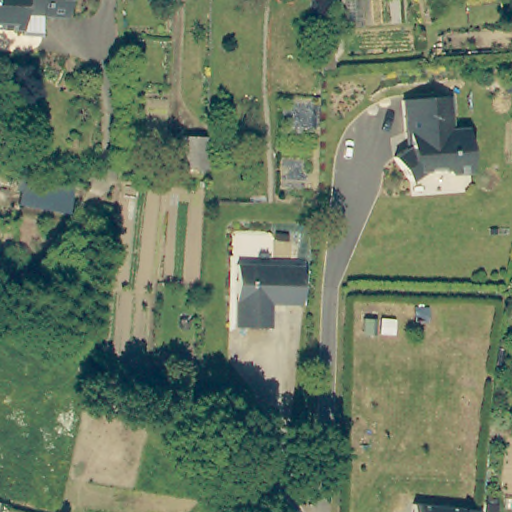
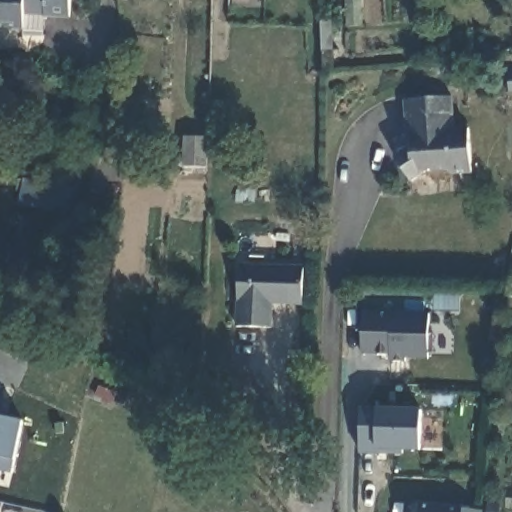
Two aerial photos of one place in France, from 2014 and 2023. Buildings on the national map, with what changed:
unchanged [(47,12),(46,33),(26,32),(26,27),(0,25),(0,0),(72,0),(71,13),(47,12)]
unchanged [(450,127),(464,126),(468,169),(448,171),(443,166),(423,168),(408,178),(391,154),(407,144),(406,134),(403,134),(400,98),(447,94),(450,127)]
unchanged [(209,136),(208,166),(186,165),(189,134),(209,136)]
unchanged [(75,185),(71,214),(21,205),(26,178),(75,185)]
unchanged [(301,268),(299,305),(282,305),(282,300),(270,300),(269,329),(234,328),(236,266),(301,268)]
unchanged [(27,326),(0,312),(0,287),(37,306),(27,326)]
new [(426,358),(405,357),(404,362),(388,362),(387,355),(360,355),(361,312),(428,313),(426,358)]
new [(418,450),(398,450),(397,455),(356,453),(357,408),(377,408),(420,408),(418,450)]
unchanged [(471,512),(401,512),(402,501),(451,507),(471,510),(471,512)]

